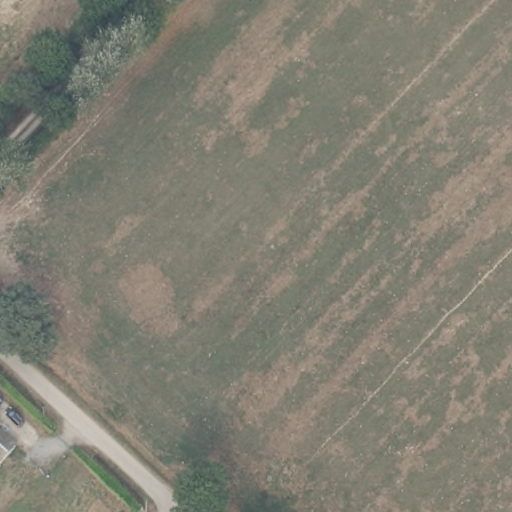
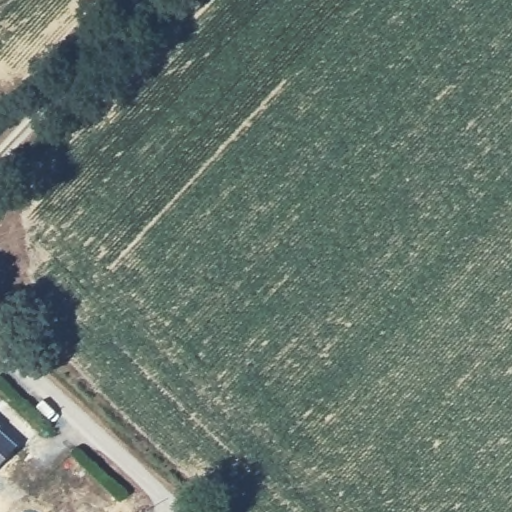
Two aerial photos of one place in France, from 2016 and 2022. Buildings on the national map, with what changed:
unchanged [(9,455),(0,464),(0,430),(17,445),(9,455)]

